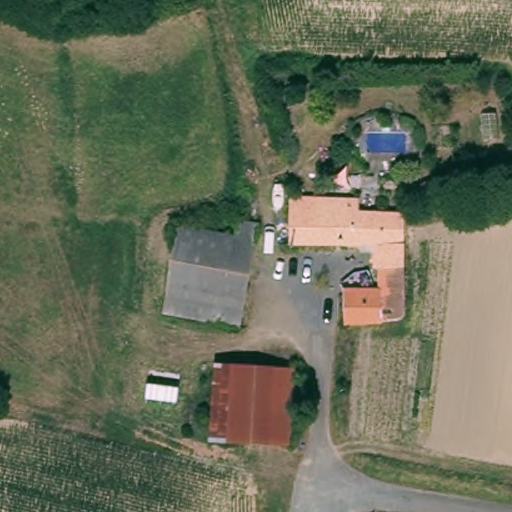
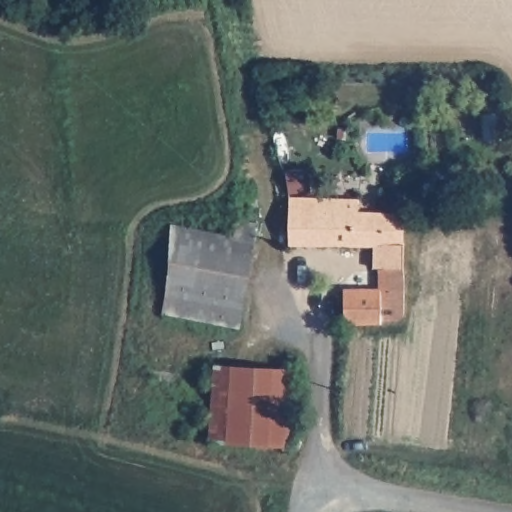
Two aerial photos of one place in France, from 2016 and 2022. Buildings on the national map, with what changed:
unchanged [(340,291),(377,289),(377,267),(370,267),(371,245),(285,247),(282,199),(358,197),(358,211),(402,212),(402,319),(381,319),(381,322),(341,323),(340,291)]
unchanged [(193,230),(232,235),(236,215),(254,219),(240,326),(160,315),(172,229),(193,230)]
unchanged [(206,446),(205,371),(277,369),(287,369),(287,445),(277,446),(206,446)]

